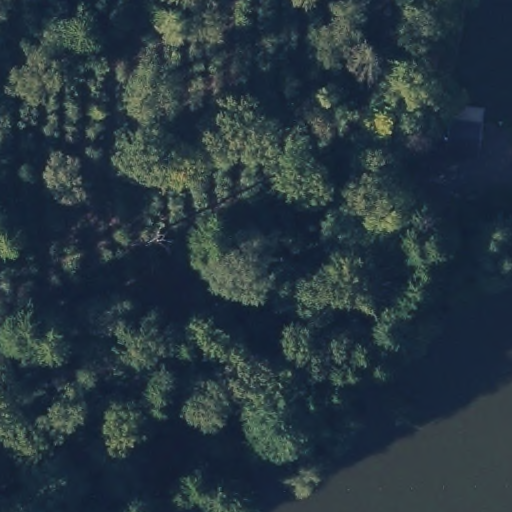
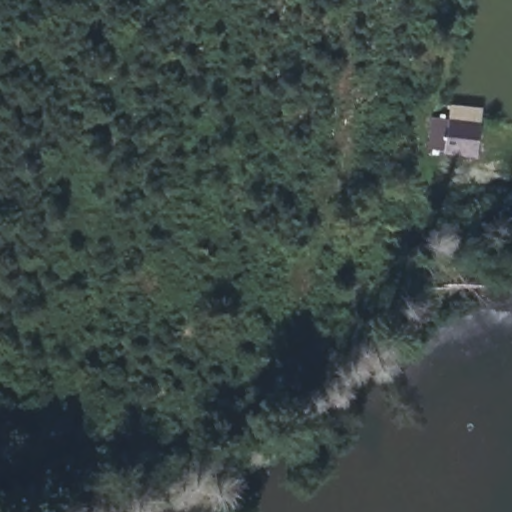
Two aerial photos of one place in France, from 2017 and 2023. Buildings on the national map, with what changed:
unchanged [(483,106),(478,138),(444,134),(449,100),(483,106)]

